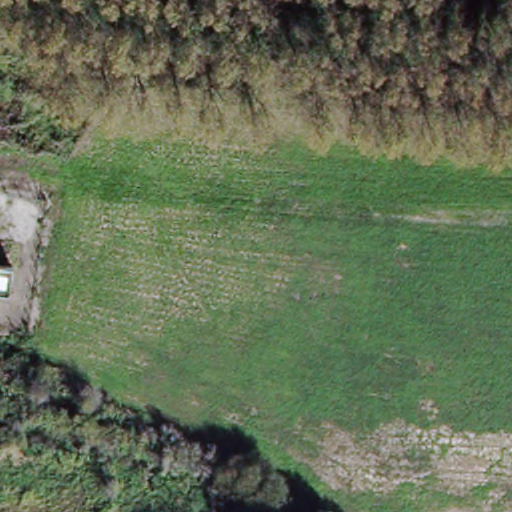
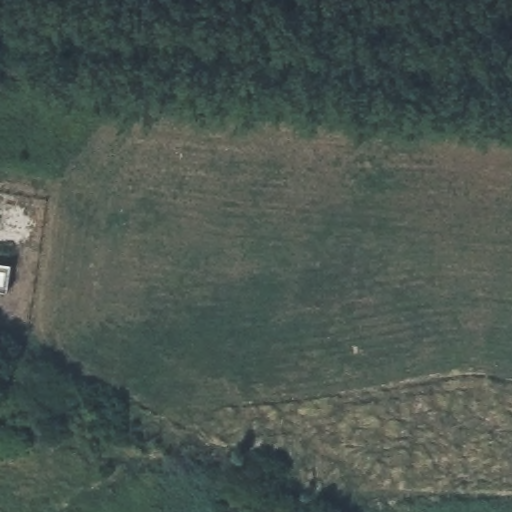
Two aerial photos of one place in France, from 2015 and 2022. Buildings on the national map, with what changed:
unchanged [(7,271),(5,296),(0,295),(0,270),(7,271)]

